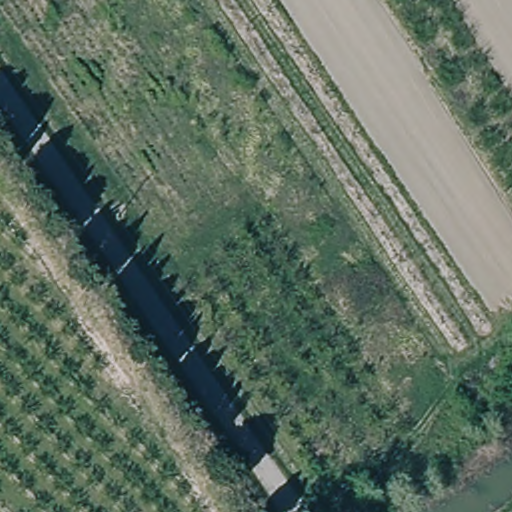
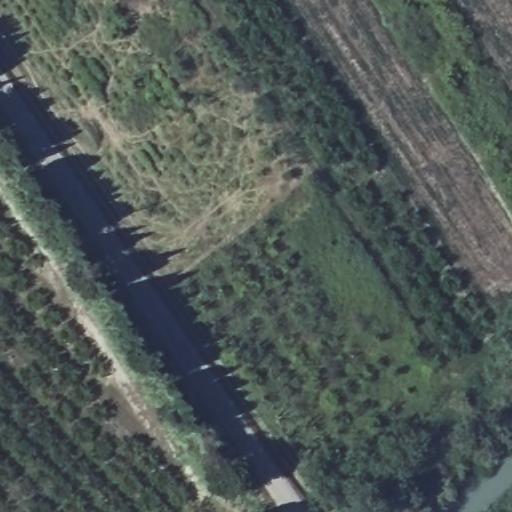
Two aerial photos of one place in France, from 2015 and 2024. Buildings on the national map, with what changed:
[]

